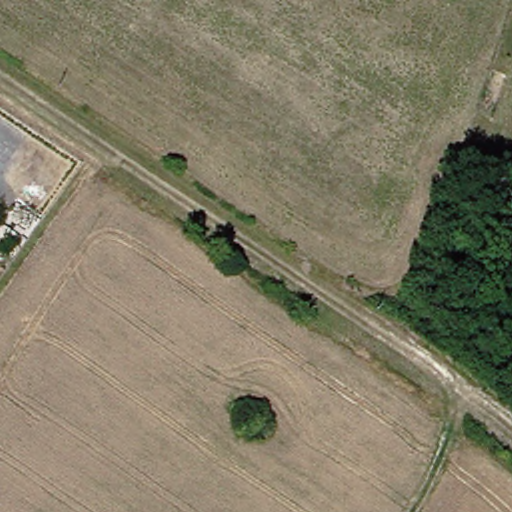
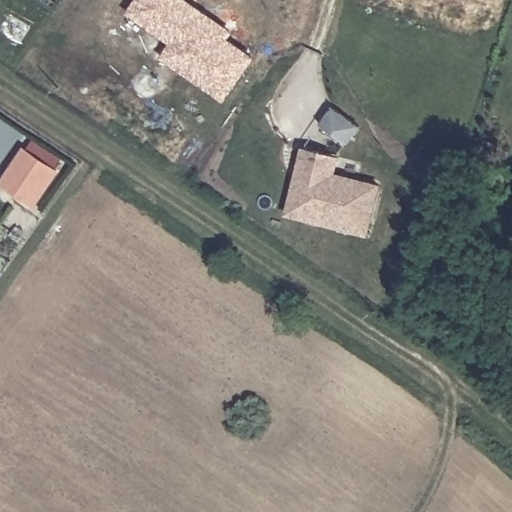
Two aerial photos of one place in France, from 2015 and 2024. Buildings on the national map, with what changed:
new [(258,56),(226,101),(162,56),(172,43),(128,11),(136,0),(193,0),(236,30),(231,36),(258,56)]
new [(332,105),(361,125),(347,144),(319,125),(332,105)]
new [(59,170),(37,205),(1,181),(24,147),(59,170)]
new [(287,194),(298,149),(333,157),(329,175),(374,187),(362,234),(304,221),(282,215),(287,194)]

